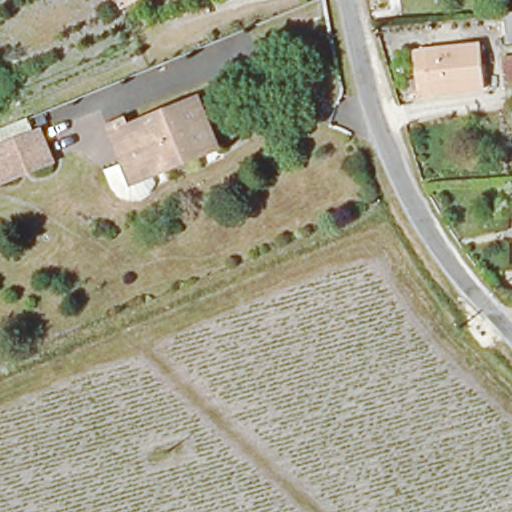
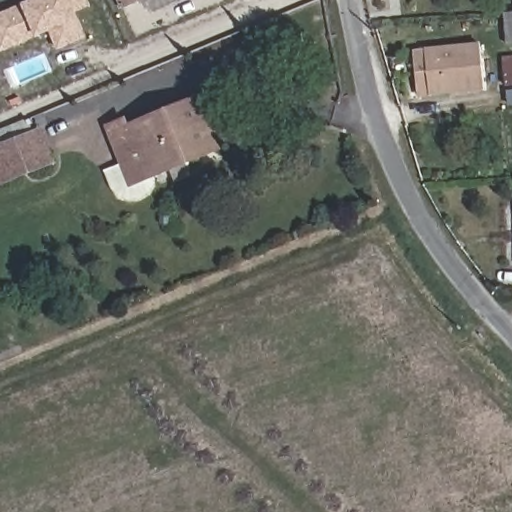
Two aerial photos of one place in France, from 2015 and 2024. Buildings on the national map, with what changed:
new [(49,31),(0,52),(0,13),(31,0),(88,0),(90,4),(75,10),(85,38),(57,50),(49,31)]
unchanged [(120,0),(140,0),(122,7),(120,0)]
unchanged [(512,15),(512,42),(511,42),(508,15),(512,15)]
unchanged [(478,48),(481,92),(428,98),(426,75),(415,76),(412,55),(478,48)]
unchanged [(505,88),(503,59),(512,59),(512,88),(505,88)]
unchanged [(116,155),(108,133),(125,127),(128,133),(199,105),(217,152),(146,181),(130,188),(116,155)]
unchanged [(35,130),(42,127),(56,164),(0,186),(0,129),(27,119),(35,130)]
unchanged [(511,212),(512,212),(512,231),(511,212)]

